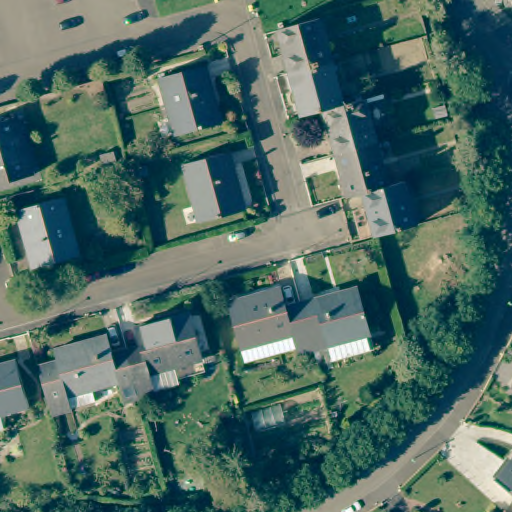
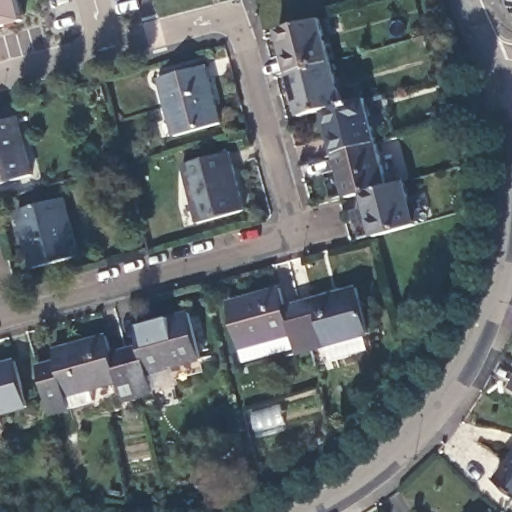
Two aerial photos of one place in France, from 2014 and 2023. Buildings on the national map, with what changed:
new [(0,28),(0,0),(14,0),(20,22),(0,28)]
unchanged [(291,74),(279,30),(321,18),(333,62),(291,74)]
unchanged [(345,105),(326,111),(304,117),(291,74),(333,62),(345,105)]
unchanged [(167,106),(160,79),(205,67),(212,94),(167,106)]
unchanged [(221,124),(175,136),(167,106),(212,94),(221,124)]
unchanged [(379,142),(338,154),(326,111),(345,105),(367,99),(379,142)]
unchanged [(0,152),(0,121),(16,117),(24,145),(0,152)]
unchanged [(391,186),(366,193),(350,197),(338,154),(379,142),(391,186)]
unchanged [(32,175),(0,183),(0,152),(24,145),(32,175)]
unchanged [(192,192),(184,165),(228,152),(236,180),(192,192)]
unchanged [(245,210),(200,222),(192,192),(236,180),(245,210)]
unchanged [(366,193),(391,186),(408,182),(420,227),(378,237),(366,193)]
unchanged [(24,238),(16,210),(61,197),(69,226),(24,238)]
unchanged [(77,255),(32,267),(24,238),(69,226),(77,255)]
unchanged [(325,343),(312,347),(300,301),(343,289),(357,285),(369,331),(364,332),(369,349),(360,352),(329,360),(325,343)]
unchanged [(296,351),(269,358),(263,338),(251,293),(279,286),(284,305),(300,301),(312,347),(296,351)]
unchanged [(245,365),(244,362),(239,345),(226,300),(251,293),(263,338),(269,358),(245,365)]
unchanged [(169,317),(192,311),(205,356),(181,362),(169,317)]
unchanged [(154,370),(159,390),(143,393),(131,348),(146,344),(141,324),(169,317),(181,362),(154,370)]
unchanged [(127,398),(121,378),(95,385),(94,385),(82,341),(111,333),(116,352),(131,348),(143,393),(127,398)]
unchanged [(94,385),(70,392),(61,359),(58,347),(82,341),(94,385)]
unchanged [(0,381),(0,363),(18,358),(30,402),(7,408),(0,381)]
unchanged [(70,392),(94,385),(95,385),(98,397),(97,397),(54,411),(41,365),(61,359),(70,392)]
unchanged [(0,411),(0,381),(7,408),(0,411)]
unchanged [(512,458),(512,492),(495,479),(512,458)]

